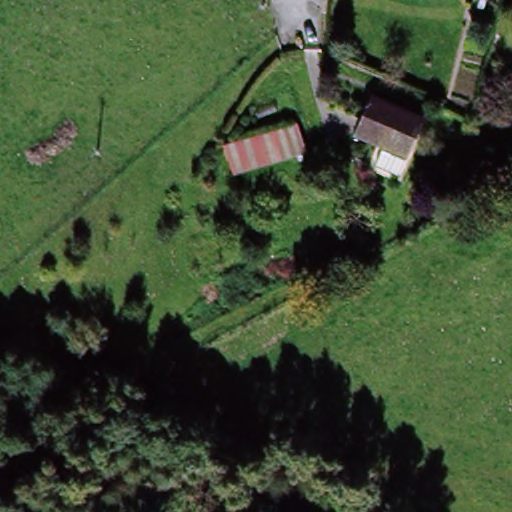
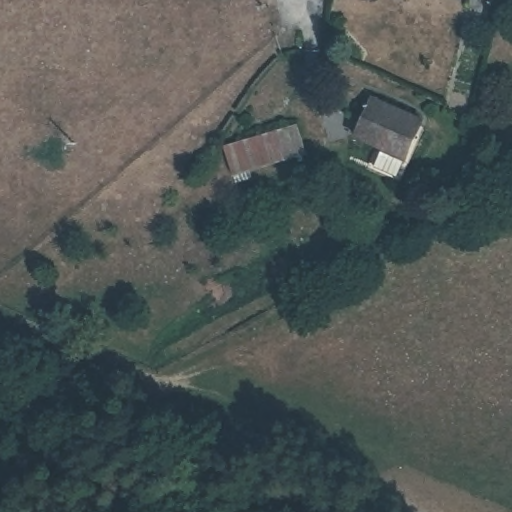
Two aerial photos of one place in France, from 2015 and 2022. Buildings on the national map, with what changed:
unchanged [(375,164),(383,145),(356,133),(374,95),(423,119),(405,156),(397,174),(375,164)]
unchanged [(223,144),(296,124),(306,154),(231,177),(223,144)]

